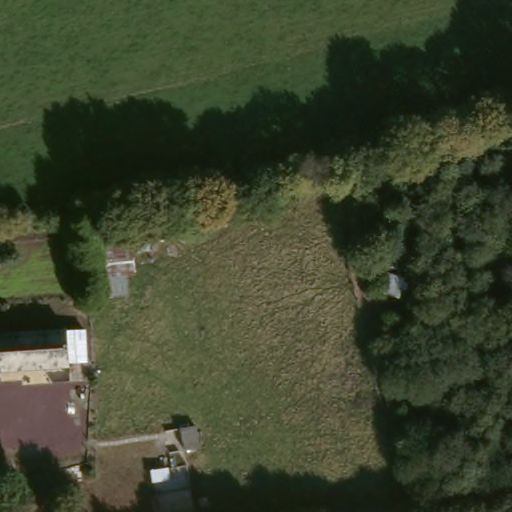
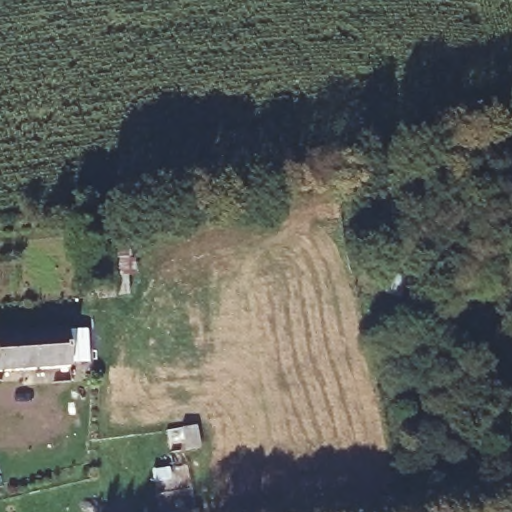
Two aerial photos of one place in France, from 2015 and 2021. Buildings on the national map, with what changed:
unchanged [(92,306),(91,247),(128,245),(130,300),(92,306)]
unchanged [(67,333),(85,332),(86,361),(69,362),(69,365),(0,371),(0,336),(67,330),(67,333)]

